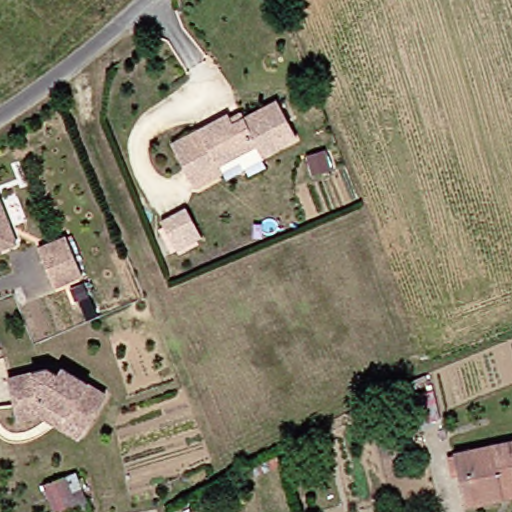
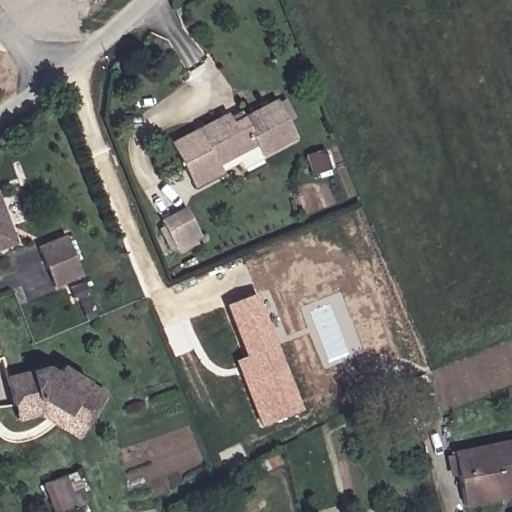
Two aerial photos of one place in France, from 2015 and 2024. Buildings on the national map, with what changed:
unchanged [(293,147),(258,162),(253,151),(214,168),(217,176),(188,188),(176,159),(168,142),(196,130),(226,117),(227,119),(228,121),(240,116),(242,122),(276,107),(293,147)]
unchanged [(327,160),(333,178),(316,184),(310,166),(327,160)]
unchanged [(0,251),(0,192),(1,192),(21,243),(0,251)]
unchanged [(204,242),(179,255),(165,225),(190,213),(204,242)]
unchanged [(86,276),(60,287),(43,247),(70,236),(86,276)]
new [(233,361),(245,357),(225,306),(256,293),(302,410),(300,418),(260,426),(233,361)]
unchanged [(6,353),(0,355),(0,338),(6,353)]
unchanged [(46,415),(25,420),(22,408),(14,380),(53,369),(63,375),(67,368),(112,394),(92,427),(86,438),(46,415)]
unchanged [(411,396),(375,412),(370,400),(405,382),(411,396)]
unchanged [(470,507),(459,453),(512,442),(512,498),(507,499),(470,507)]
unchanged [(97,503),(73,512),(64,512),(53,486),(85,473),(97,503)]

